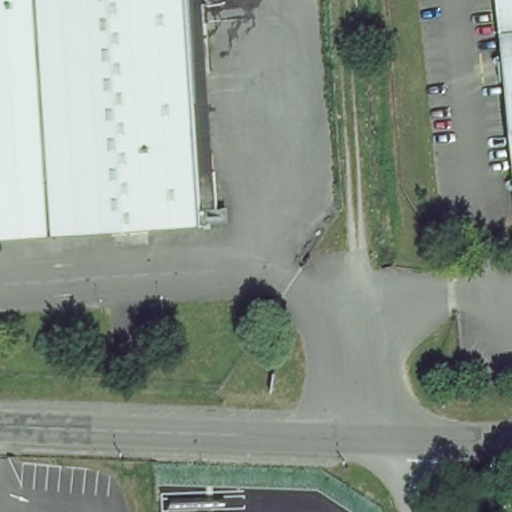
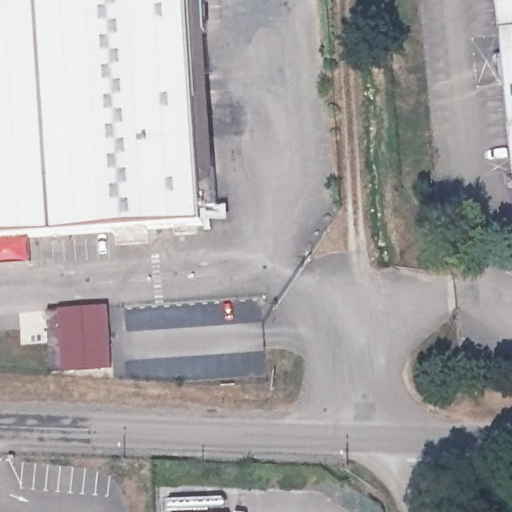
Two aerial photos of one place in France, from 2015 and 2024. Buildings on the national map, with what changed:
unchanged [(191,0),(191,10),(207,9),(209,39),(194,39),(204,178),(217,177),(220,213),(207,214),(208,231),(0,245),(0,0),(191,0)]
unchanged [(482,0),(512,0),(512,230),(506,230),(482,0)]
new [(107,305),(111,368),(61,371),(56,308),(107,305)]

